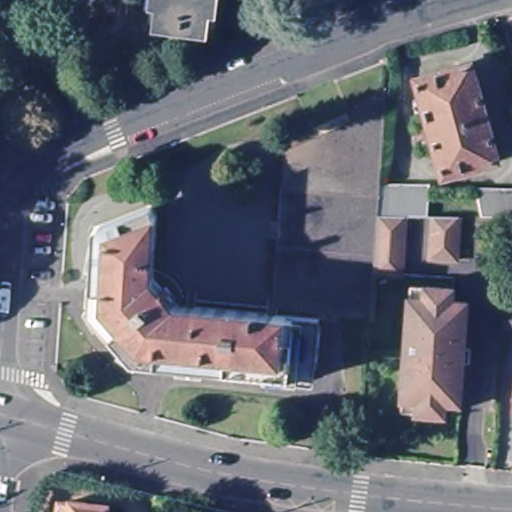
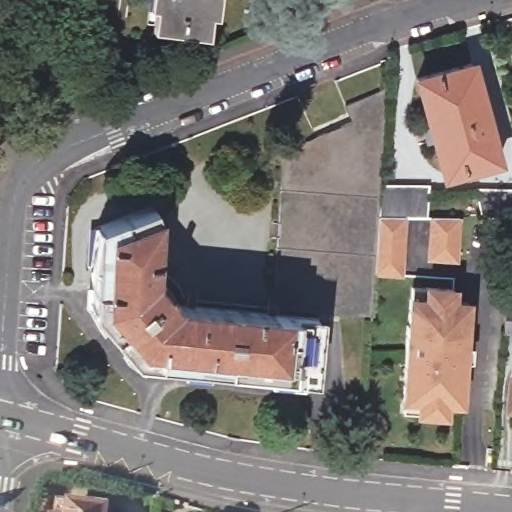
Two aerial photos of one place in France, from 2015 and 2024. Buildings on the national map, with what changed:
unchanged [(147,22),(150,0),(215,0),(211,30),(147,22)]
unchanged [(468,63),(495,163),(439,178),(413,78),(468,63)]
unchanged [(383,113),(378,188),(375,221),(371,278),(368,320),(269,312),(277,154),(348,127),(342,109),(385,91),(383,113)]
unchanged [(378,188),(423,191),(422,222),(403,221),(375,221),(378,188)]
unchanged [(477,218),(469,188),(512,190),(512,220),(508,219),(477,218)]
unchanged [(311,385),(289,383),(265,381),(138,369),(89,309),(93,263),(97,264),(99,227),(153,209),(157,210),(150,281),(174,312),(316,323),(311,385)]
unchanged [(399,280),(371,278),(375,221),(403,221),(399,280)]
unchanged [(458,223),(457,264),(430,263),(431,222),(458,223)]
unchanged [(407,370),(406,370),(410,322),(411,322),(413,296),(414,279),(428,280),(456,282),(455,294),(470,295),(463,388),(462,400),(447,399),(446,412),(419,410),(404,409),(405,397),(407,370)]
unchanged [(512,333),(499,332),(501,307),(512,308),(512,333)]
unchanged [(106,509),(106,512),(60,512),(61,506),(70,507),(71,503),(106,509)]

